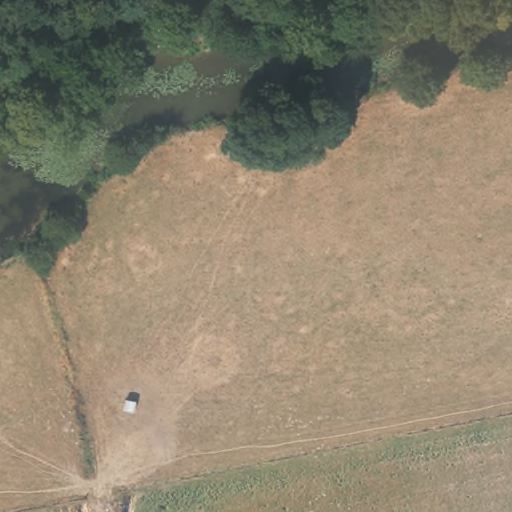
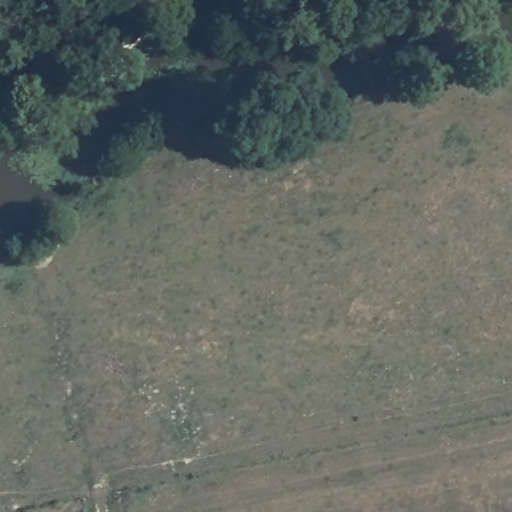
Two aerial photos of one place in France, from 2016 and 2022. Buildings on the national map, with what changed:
unchanged [(166,14),(176,46),(122,62),(114,31),(166,14)]

